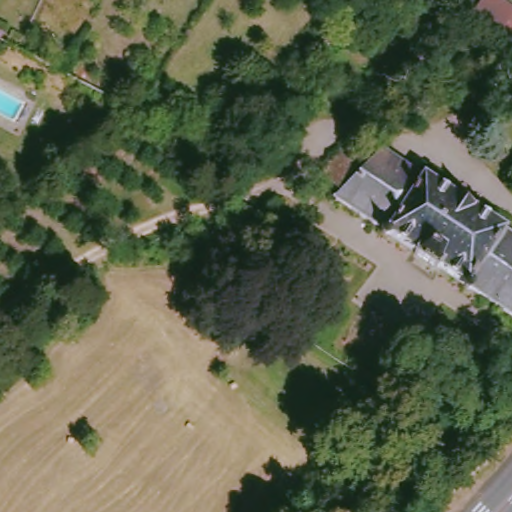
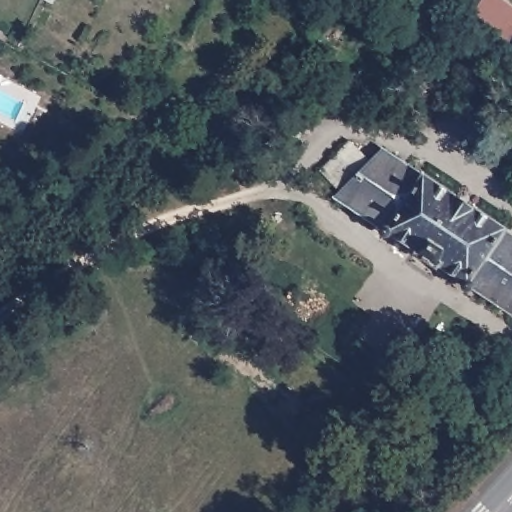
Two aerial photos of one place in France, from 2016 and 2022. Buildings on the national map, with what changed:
unchanged [(465,16),(441,0),(464,0),(472,6),(465,16)]
unchanged [(498,37),(470,17),(483,0),(495,0),(512,13),(512,32),(505,42),(498,37)]
unchanged [(435,273),(413,258),(415,255),(335,202),(340,197),(321,176),(351,147),(360,156),(365,150),(376,161),(383,154),(480,218),(512,239),(512,320),(437,271),(435,273)]

